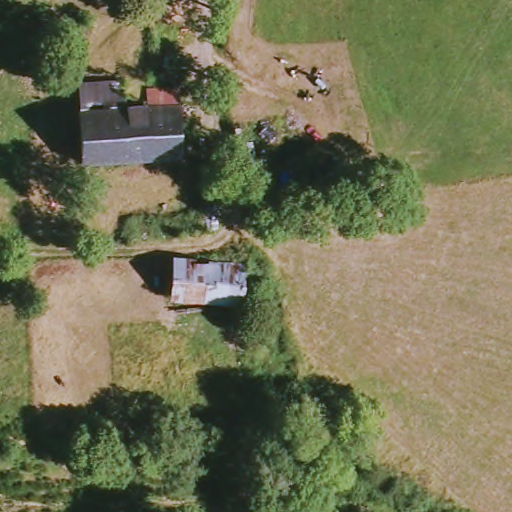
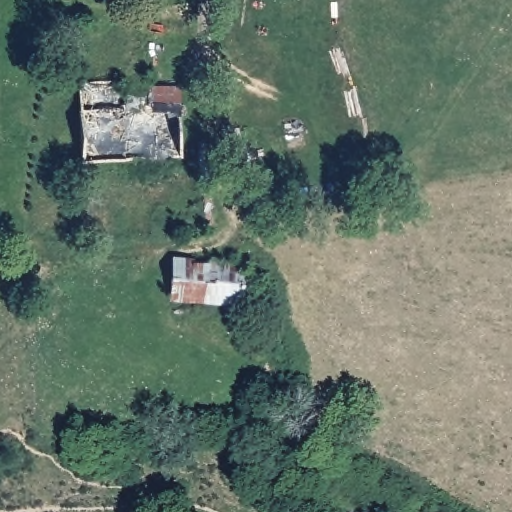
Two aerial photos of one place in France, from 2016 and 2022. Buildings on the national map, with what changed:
unchanged [(72,94),(117,89),(120,115),(146,114),(144,90),(174,88),(182,160),(81,173),(72,94)]
unchanged [(169,303),(169,260),(243,264),(241,308),(169,303)]

